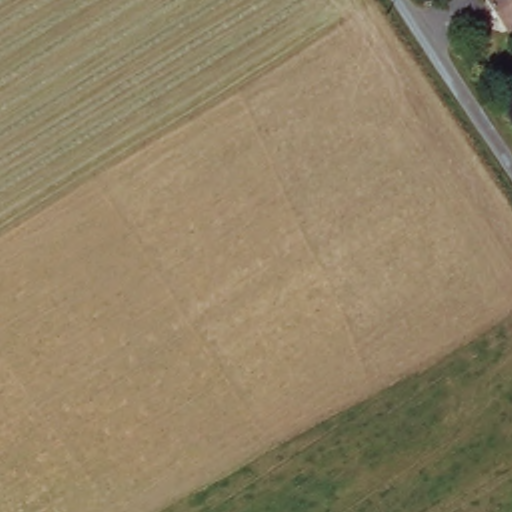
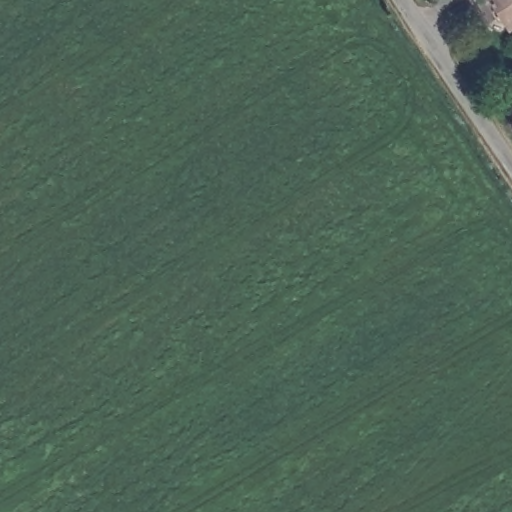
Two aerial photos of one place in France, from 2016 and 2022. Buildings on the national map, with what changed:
unchanged [(475,0),(512,0),(512,21),(496,32),(489,22),(475,0)]

